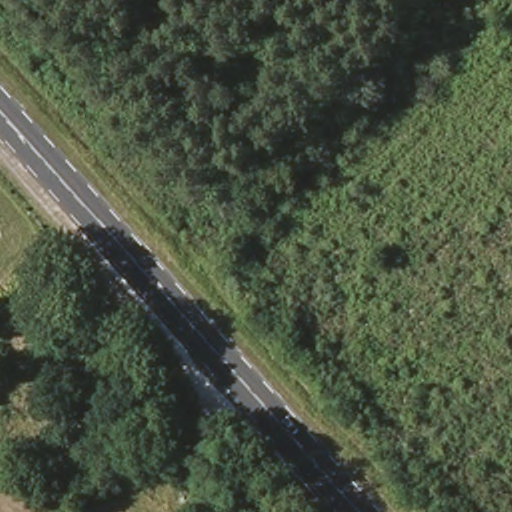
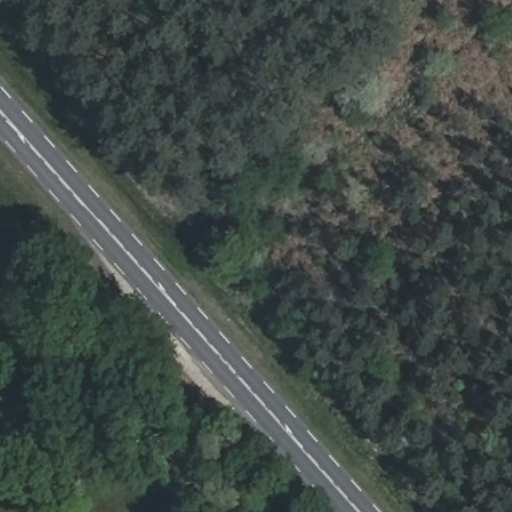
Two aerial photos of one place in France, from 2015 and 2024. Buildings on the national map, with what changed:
unchanged [(197,472),(200,502),(181,504),(178,473),(197,472)]

